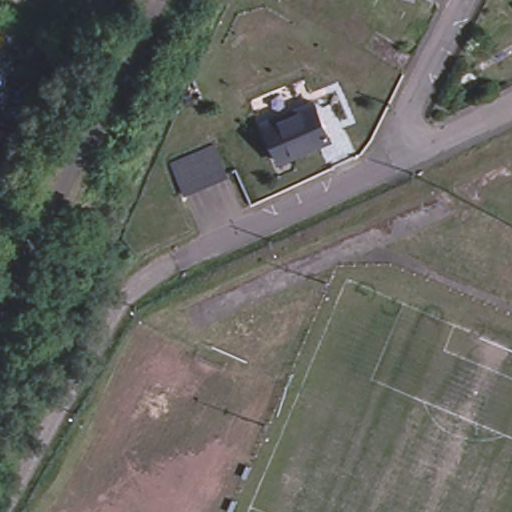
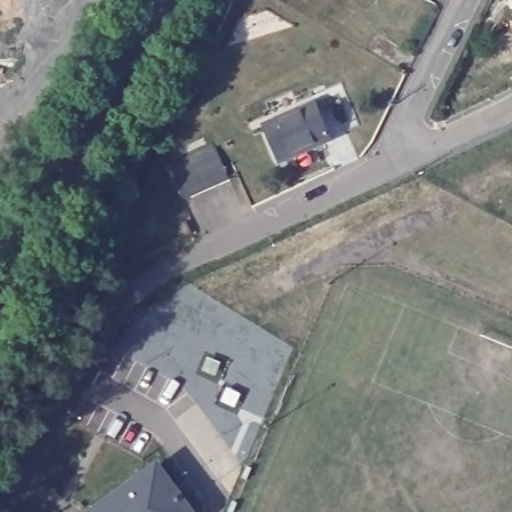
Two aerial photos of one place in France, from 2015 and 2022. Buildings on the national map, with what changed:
unchanged [(261,127),(312,105),(328,142),(276,164),(261,127)]
unchanged [(227,182),(184,202),(171,173),(214,154),(227,182)]
new [(157,462),(196,512),(87,512),(157,462)]

